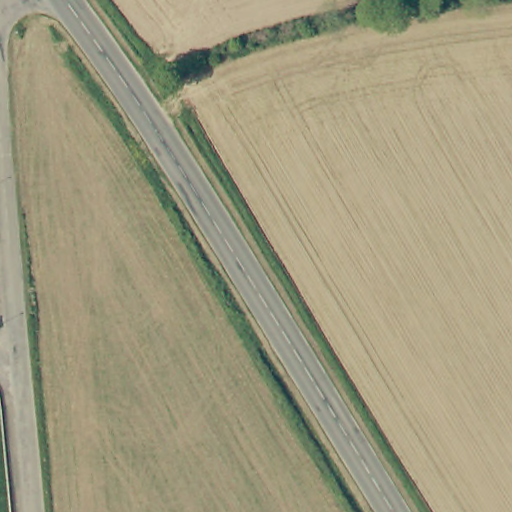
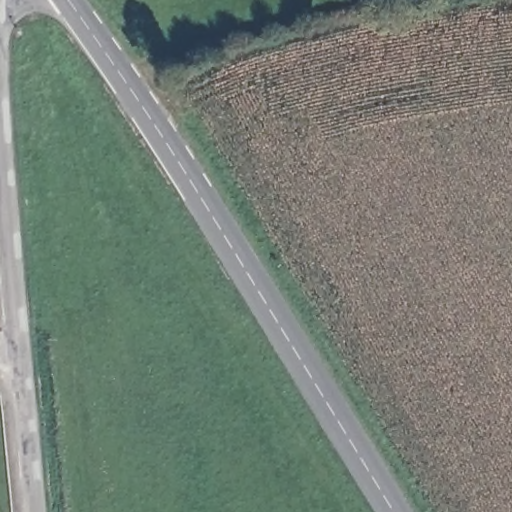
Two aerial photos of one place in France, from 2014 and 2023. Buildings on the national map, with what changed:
[]

